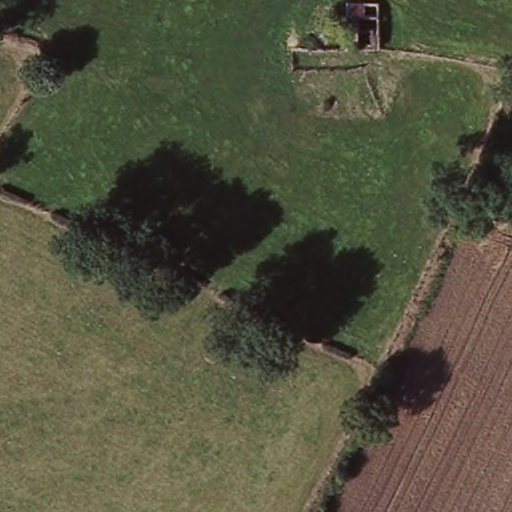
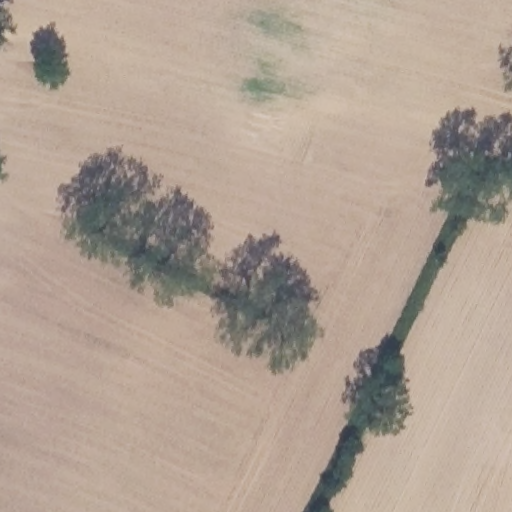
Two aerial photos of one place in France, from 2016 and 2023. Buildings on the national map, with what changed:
unchanged [(347,4),(379,4),(378,48),(347,47),(347,16),(347,4)]

